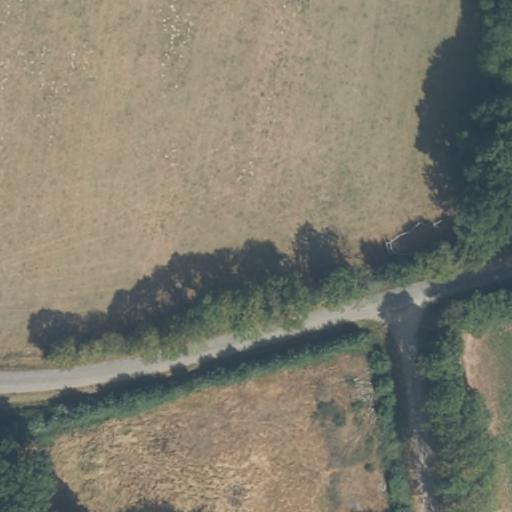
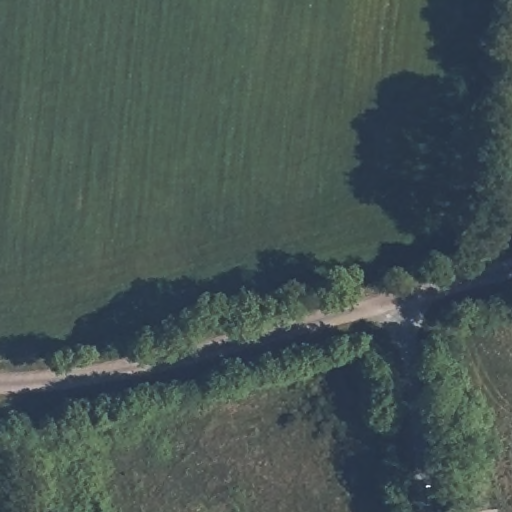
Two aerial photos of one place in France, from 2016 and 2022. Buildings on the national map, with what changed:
unchanged [(511,106),(512,102),(512,106),(511,106)]

